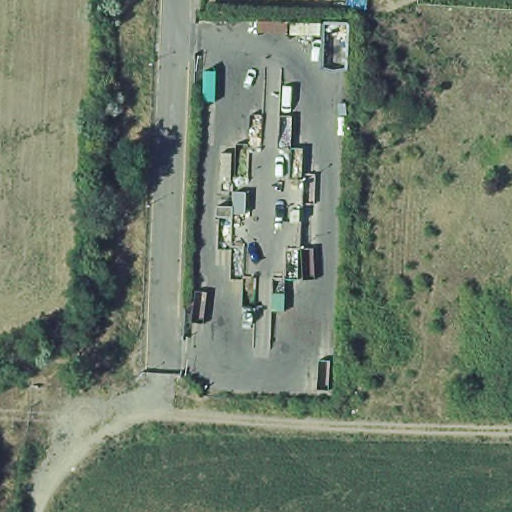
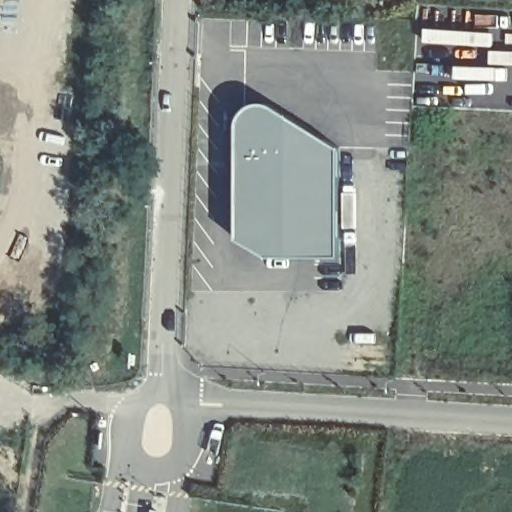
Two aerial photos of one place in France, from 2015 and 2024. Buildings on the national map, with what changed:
unchanged [(359,2),(307,1),(307,0),(359,0),(359,2)]
new [(342,259),(269,257),(237,239),(238,125),(240,116),(245,109),(252,105),(260,103),(270,105),(284,112),(340,148),(342,259)]

